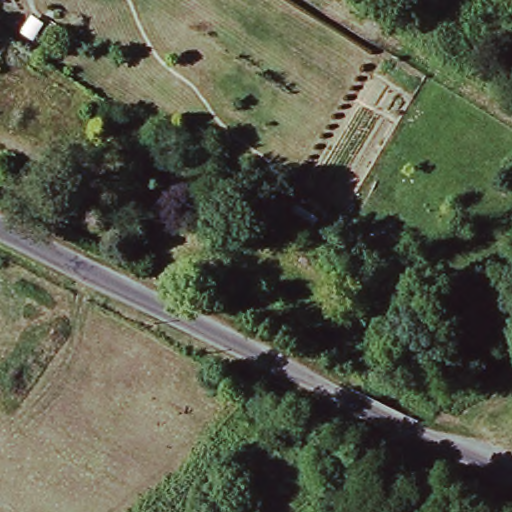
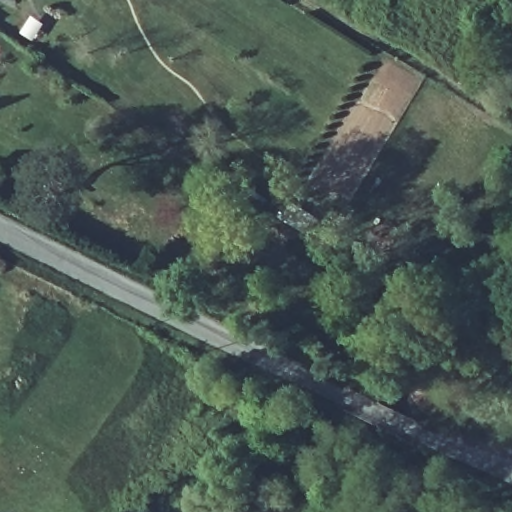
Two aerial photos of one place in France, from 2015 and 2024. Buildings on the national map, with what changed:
[]

